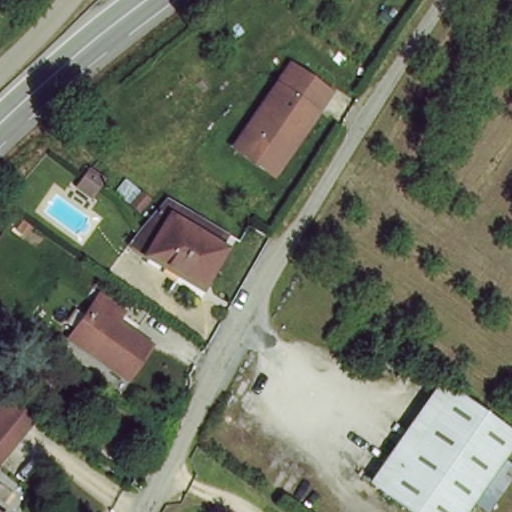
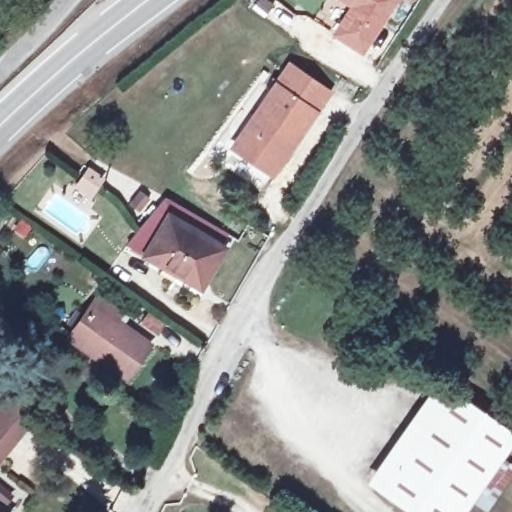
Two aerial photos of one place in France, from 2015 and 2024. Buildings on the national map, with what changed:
new [(362,56),(330,34),(347,7),(338,0),(398,0),(362,56)]
unchanged [(273,174),(235,146),(291,62),(327,89),(273,174)]
unchanged [(205,242),(207,243),(197,263),(145,229),(166,193),(177,201),(214,226),(205,242)]
unchanged [(133,248),(145,229),(197,263),(187,281),(133,248)]
unchanged [(119,376),(62,332),(85,298),(92,289),(116,307),(110,316),(143,341),(119,376)]
unchanged [(463,512),(414,512),(366,480),(438,377),(512,428),(512,443),(463,512)]
unchanged [(25,422),(0,460),(0,405),(25,422)]

